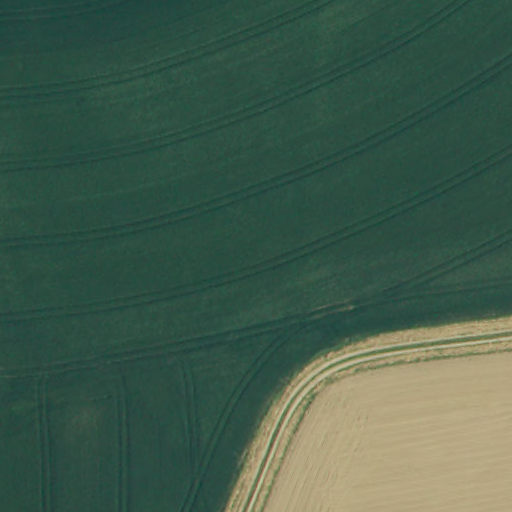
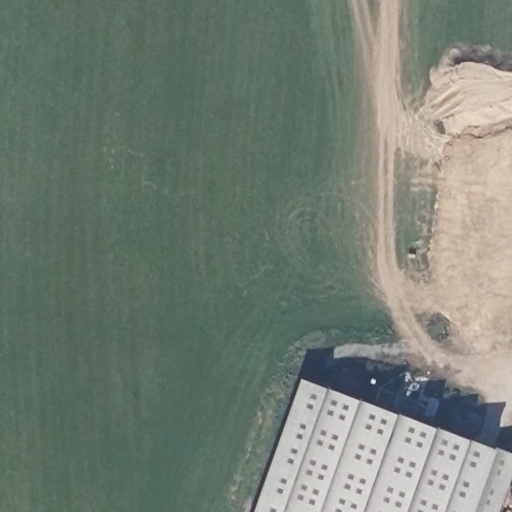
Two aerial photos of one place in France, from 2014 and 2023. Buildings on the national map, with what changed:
new [(508,512),(260,512),(307,376),(512,448),(512,502),(508,512)]

